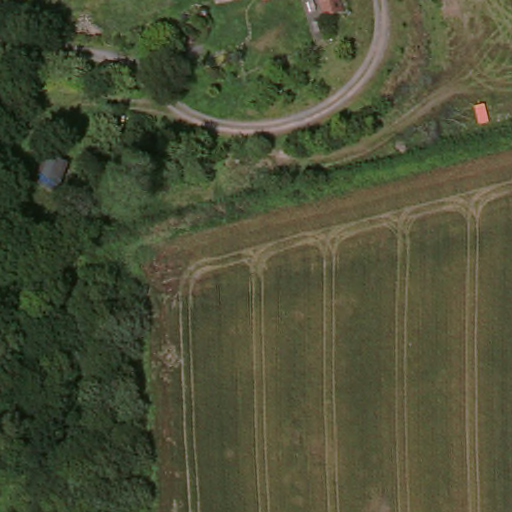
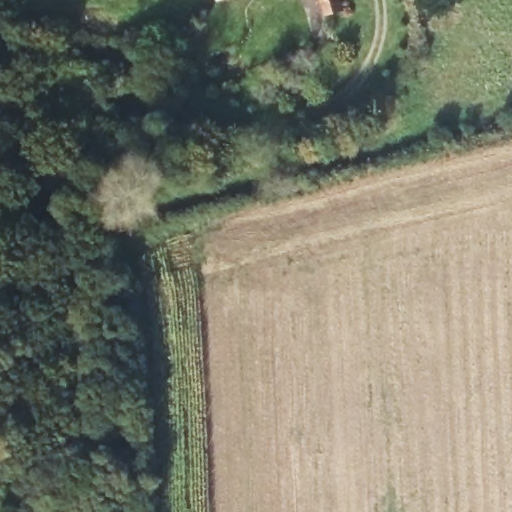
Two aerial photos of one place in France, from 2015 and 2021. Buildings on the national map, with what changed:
unchanged [(313,0),(332,0),(336,20),(319,24),(313,0)]
unchanged [(52,203),(31,194),(46,163),(69,170),(52,203)]

